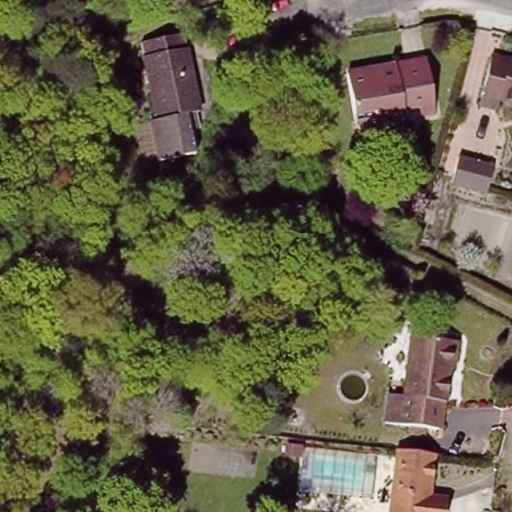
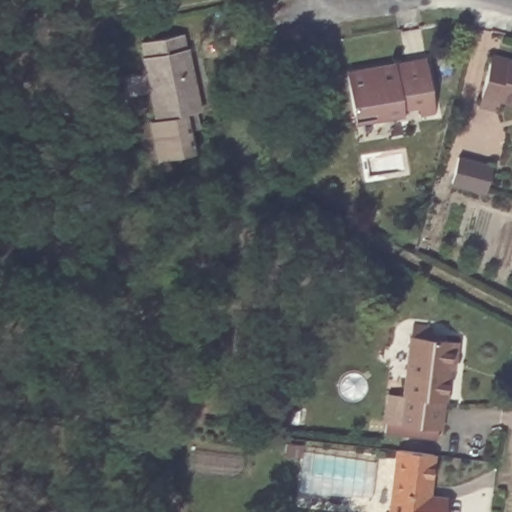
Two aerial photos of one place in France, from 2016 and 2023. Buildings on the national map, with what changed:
unchanged [(152,120),(160,119),(142,42),(186,33),(202,109),(190,112),(197,151),(160,159),(152,120)]
unchanged [(417,101),(405,104),(405,109),(345,120),(335,70),(364,65),(365,73),(395,68),(393,62),(427,56),(434,99),(436,110),(420,114),(417,101)]
unchanged [(493,61),(512,66),(512,105),(500,102),(497,115),(481,111),(493,61)]
unchanged [(450,373),(442,373),(440,432),(380,433),(381,398),(401,399),(403,373),(389,370),(391,346),(408,345),(409,341),(452,341),(450,373)]
unchanged [(427,497),(439,497),(438,512),(388,512),(392,450),(430,454),(427,497)]

